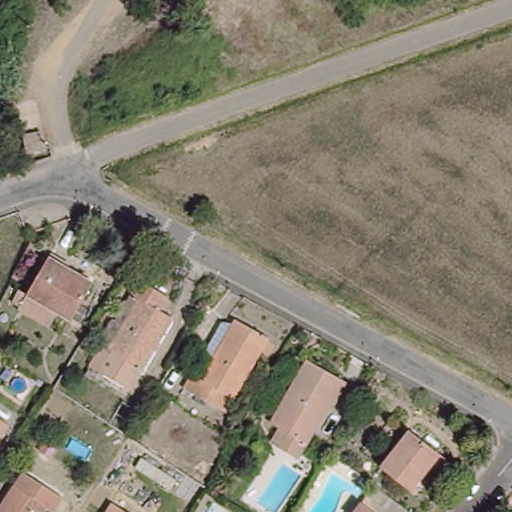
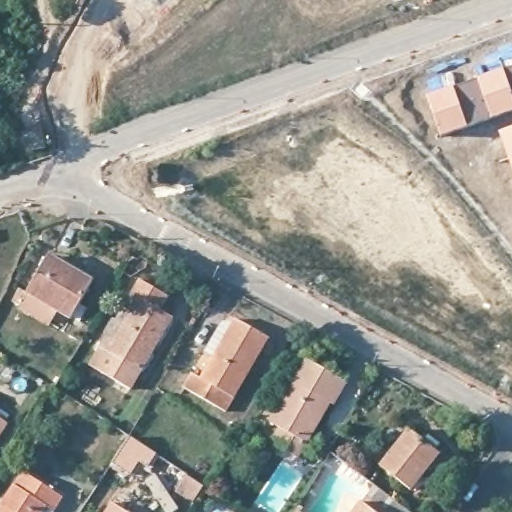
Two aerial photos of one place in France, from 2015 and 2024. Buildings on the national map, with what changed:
new [(512,66),(512,94),(503,69),(512,66)]
new [(503,69),(512,94),(512,112),(492,120),(477,78),(503,69)]
new [(477,78),(492,120),(440,137),(427,96),(477,78)]
new [(512,127),(512,169),(498,132),(512,127)]
unchanged [(49,151),(27,154),(23,134),(43,131),(49,151)]
unchanged [(44,268),(88,292),(67,330),(23,304),(44,268)]
unchanged [(90,370),(102,348),(109,352),(137,300),(129,296),(137,280),(167,296),(158,314),(168,322),(131,393),(90,370)]
unchanged [(266,335),(225,413),(182,390),(189,377),(197,381),(233,318),(266,335)]
unchanged [(272,412),(295,370),(335,392),(312,434),(304,447),(281,435),(287,422),(272,412)]
unchanged [(0,424),(0,416),(3,419),(0,424)]
unchanged [(375,467),(405,430),(442,459),(431,473),(427,471),(408,495),(398,486),(375,467)]
unchanged [(62,493),(53,506),(45,504),(39,512),(0,512),(0,502),(23,468),(62,493)]
unchanged [(131,512),(102,512),(111,499),(131,512)]
unchanged [(366,512),(348,512),(355,503),(366,512)]
unchanged [(296,512),(290,512),(292,509),(296,512)]

